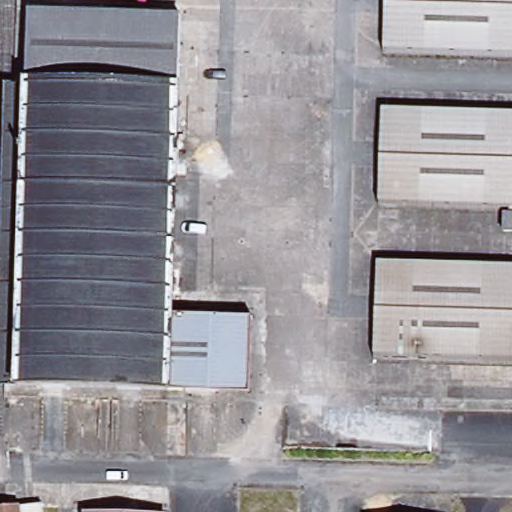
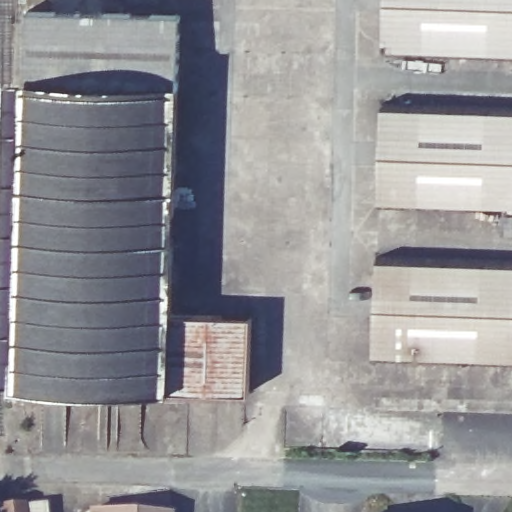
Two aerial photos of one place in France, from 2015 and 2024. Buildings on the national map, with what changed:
unchanged [(387,0),(512,0),(512,53),(385,49),(387,0)]
unchanged [(178,86),(172,318),(248,317),(246,393),(170,392),(16,384),(25,83),(30,11),(181,16),(178,86)]
unchanged [(383,111),(512,115),(512,205),(379,201),(383,111)]
unchanged [(378,264),(512,268),(512,359),(375,354),(378,264)]
unchanged [(20,509),(41,505),(42,512),(0,512),(0,510),(20,509)]

